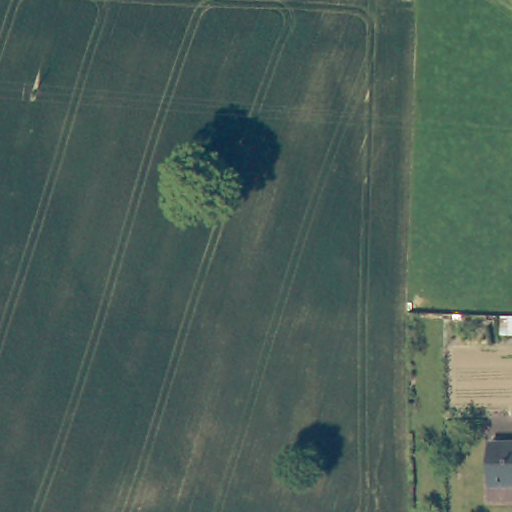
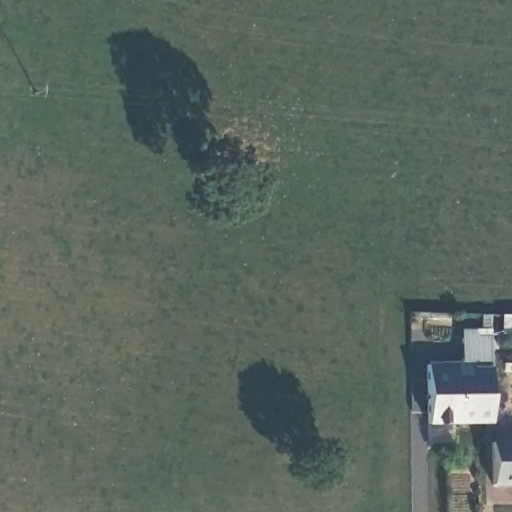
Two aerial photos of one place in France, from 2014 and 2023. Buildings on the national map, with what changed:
unchanged [(501,315),(512,316),(512,337),(501,336),(501,315)]
new [(426,362),(459,361),(460,328),(491,328),(491,424),(425,425),(426,362)]
unchanged [(487,443),(512,444),(512,485),(487,485),(487,443)]

